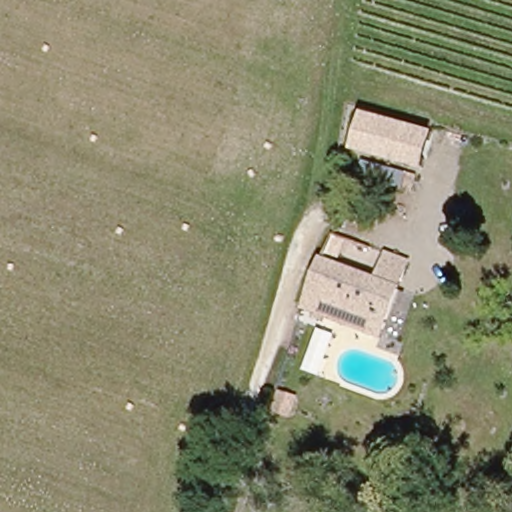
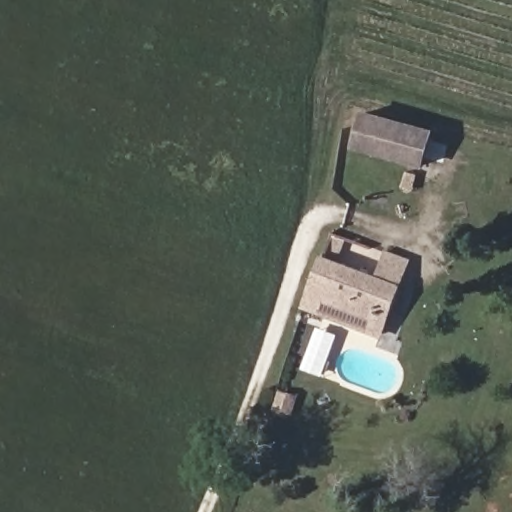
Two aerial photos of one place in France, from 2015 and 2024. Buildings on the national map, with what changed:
unchanged [(365,114),(430,131),(422,168),(355,149),(365,114)]
unchanged [(338,231),(414,257),(388,329),(314,303),(338,231)]

